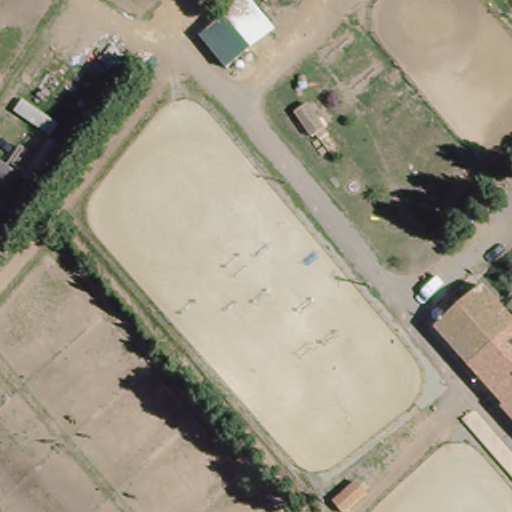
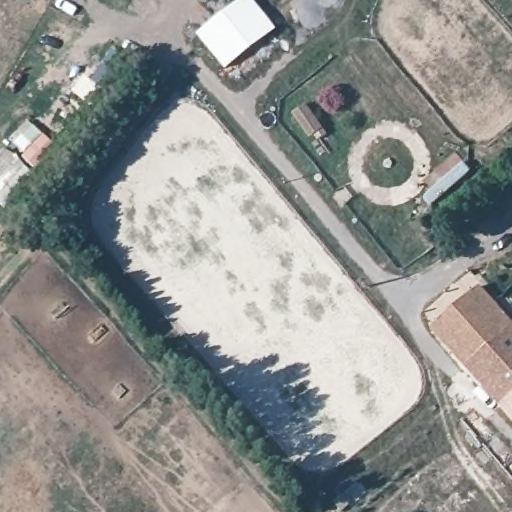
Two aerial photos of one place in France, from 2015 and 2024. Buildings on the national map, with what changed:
unchanged [(222,10),(250,44),(221,65),(195,33),(222,10)]
unchanged [(436,331),(478,293),(490,294),(512,319),(512,417),(498,402),(436,331)]

